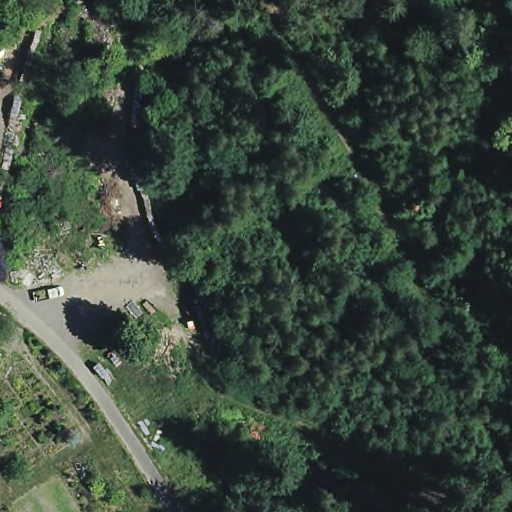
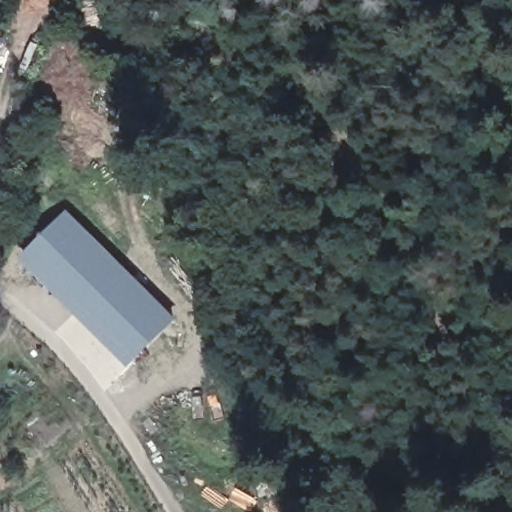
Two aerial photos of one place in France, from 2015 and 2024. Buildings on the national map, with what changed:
unchanged [(4,36),(5,62),(0,70),(0,36),(4,36)]
new [(67,207),(176,317),(128,366),(16,258),(67,207)]

